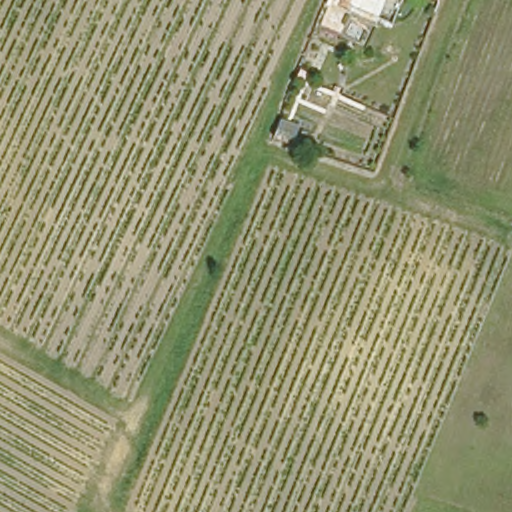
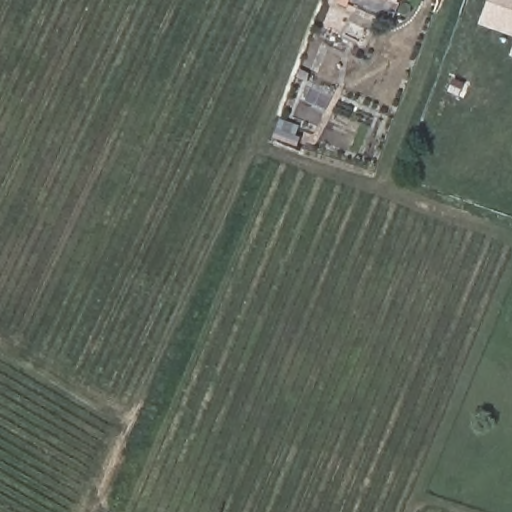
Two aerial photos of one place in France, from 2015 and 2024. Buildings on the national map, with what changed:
demolished [(385,0),(393,0),(392,4),(385,0)]
new [(482,23),(490,0),(512,0),(512,34),(482,23)]

